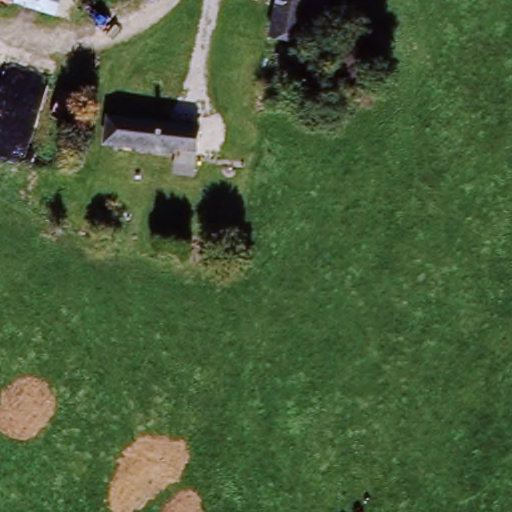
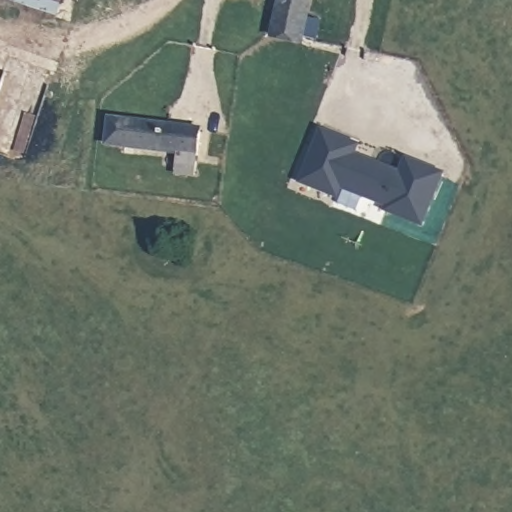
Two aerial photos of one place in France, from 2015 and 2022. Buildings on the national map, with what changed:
unchanged [(53,0),(58,0),(57,1),(53,0)]
unchanged [(280,0),(313,0),(302,48),(272,42),(280,0)]
unchanged [(170,177),(172,153),(102,144),(107,115),(202,126),(198,156),(195,180),(170,177)]
new [(360,146),(354,161),(400,179),(407,161),(444,175),(423,227),(388,213),(390,208),(307,175),(324,133),(360,146)]
new [(344,190),(340,199),(303,184),(307,175),(344,190)]

